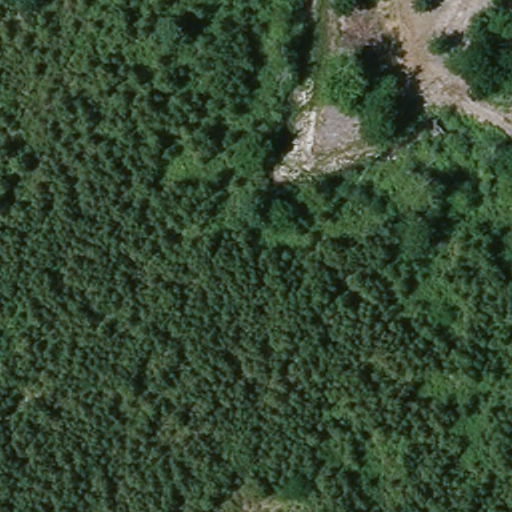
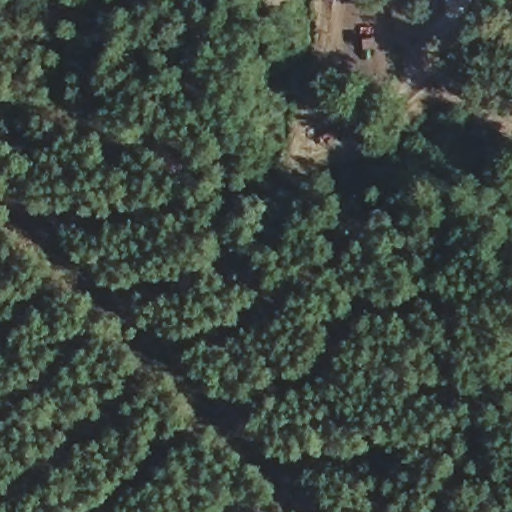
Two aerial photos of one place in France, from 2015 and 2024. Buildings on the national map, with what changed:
[]

